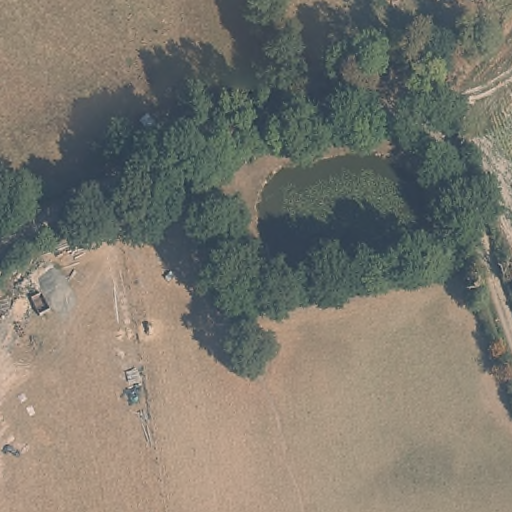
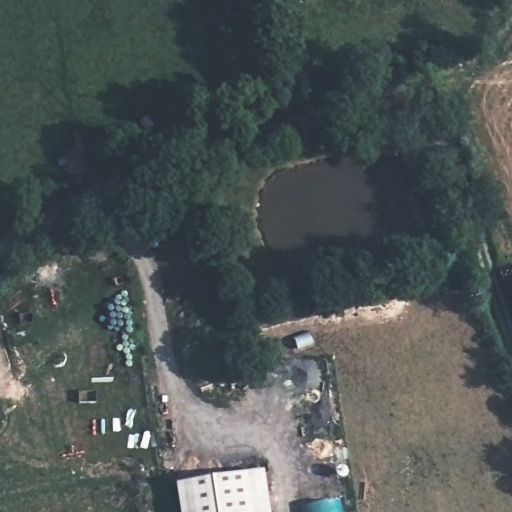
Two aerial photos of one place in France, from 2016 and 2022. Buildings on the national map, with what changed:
new [(264,469),(271,512),(179,512),(175,485),(264,469)]
new [(340,500),(342,512),(305,512),(305,507),(340,500)]

